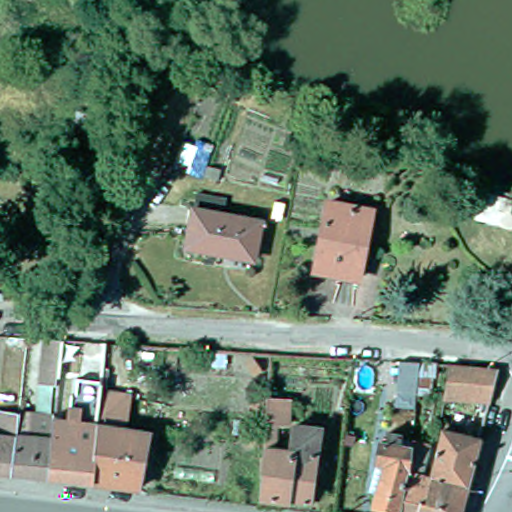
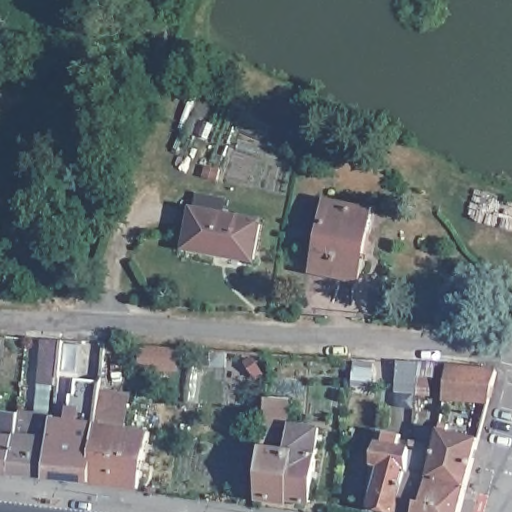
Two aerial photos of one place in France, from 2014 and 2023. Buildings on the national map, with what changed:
unchanged [(326,196),(368,204),(354,273),(312,265),(326,196)]
unchanged [(190,203),(258,216),(250,255),(182,241),(190,203)]
unchanged [(390,375),(391,355),(412,356),(428,357),(426,387),(410,386),(411,377),(390,375)]
unchanged [(487,361),(492,366),(485,395),(438,391),(441,358),(487,361)]
unchanged [(79,377),(104,380),(102,401),(101,406),(100,422),(95,483),(52,478),(58,413),(75,415),(79,377)]
unchanged [(265,393),(290,395),(288,420),(277,418),(275,445),(290,446),(292,420),(317,423),(310,496),(258,491),(265,393)]
unchanged [(101,406),(126,409),(123,430),(149,432),(142,488),(95,483),(100,422),(101,406)]
unchanged [(23,410),(15,473),(0,472),(0,407),(23,410)]
unchanged [(15,473),(23,410),(58,413),(52,478),(15,473)]
unchanged [(438,423),(435,422),(436,415),(443,417),(442,424),(475,432),(454,512),(415,512),(424,478),(438,423)]
unchanged [(367,502),(378,460),(370,458),(376,437),(381,438),(384,426),(395,428),(393,441),(405,444),(404,452),(394,500),(392,508),(367,502)]
unchanged [(408,512),(392,508),(394,500),(404,452),(405,444),(406,441),(423,445),(414,475),(424,478),(415,512),(408,512)]

